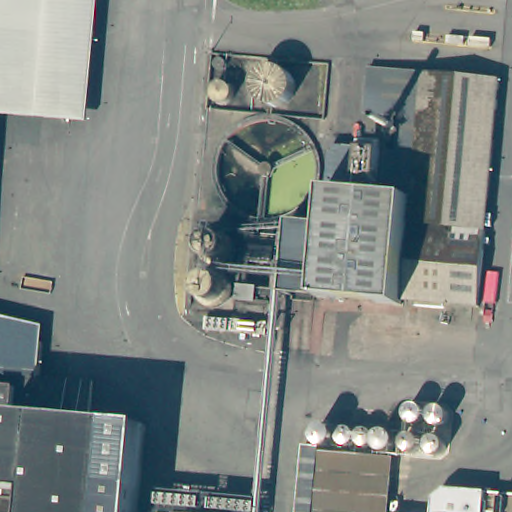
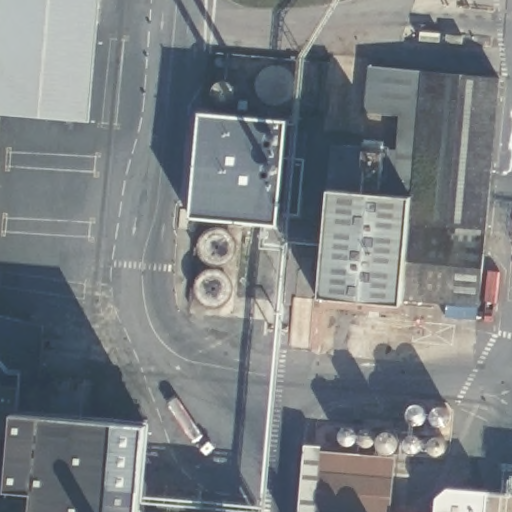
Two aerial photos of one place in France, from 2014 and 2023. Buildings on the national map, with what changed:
unchanged [(89,120),(0,112),(0,0),(97,0),(89,120)]
unchanged [(501,79),(486,249),(483,288),(482,304),(406,297),(415,197),(416,197),(420,154),(422,121),(370,116),(373,67),(501,79)]
new [(282,158),(303,159),(297,212),(278,209),(275,222),(191,215),(201,113),(286,120),(282,158)]
unchanged [(416,197),(333,192),(337,147),(420,154),(416,197)]
unchanged [(333,192),(415,197),(406,297),(404,303),(324,295),(330,223),(333,192)]
unchanged [(330,223),(324,295),(290,291),(296,221),(330,223)]
unchanged [(238,248),(234,256),(223,262),(214,262),(205,256),(201,245),(203,236),(214,224),(226,225),(234,230),(237,238),(238,248)]
unchanged [(512,250),(512,290),(483,288),(486,249),(512,250)]
unchanged [(235,291),(232,300),(221,307),(208,305),(200,297),(199,283),(203,276),(211,270),(219,269),(230,273),(235,281),(235,291)]
unchanged [(36,369),(55,371),(6,405),(10,457),(15,491),(24,512),(0,512),(0,314),(41,320),(36,369)]
unchanged [(10,457),(6,405),(55,371),(91,374),(87,416),(145,422),(138,512),(24,512),(15,491),(10,457)]
unchanged [(446,431),(445,455),(393,452),(318,446),(314,512),(295,512),(304,420),(446,431)]
unchanged [(393,452),(388,512),(314,512),(318,446),(393,452)]
unchanged [(445,493),(512,499),(512,512),(433,512),(434,502),(445,493)]
unchanged [(169,501),(177,502),(177,512),(161,512),(162,500),(169,501)]

